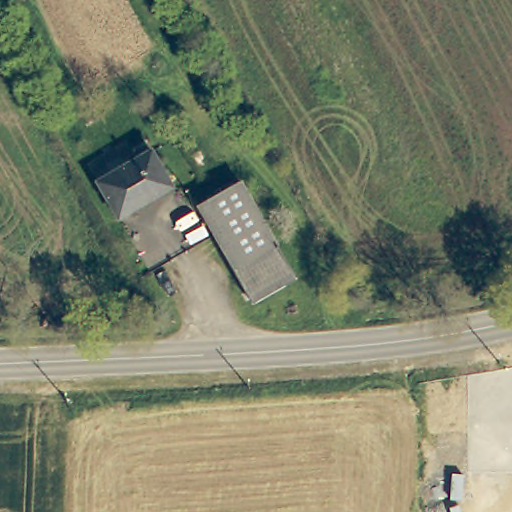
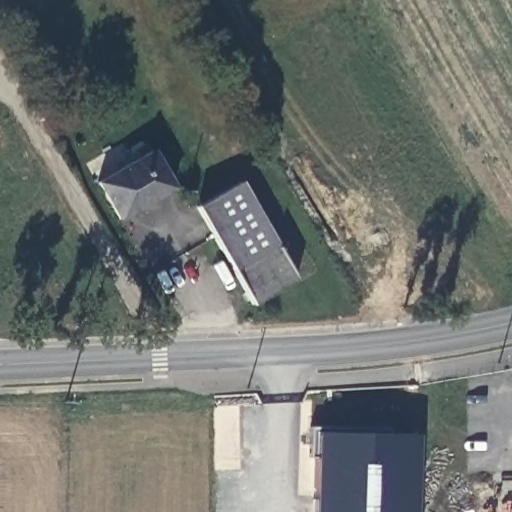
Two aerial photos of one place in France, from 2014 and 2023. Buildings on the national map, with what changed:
unchanged [(149,139),(175,187),(121,219),(100,182),(139,160),(132,147),(149,139)]
unchanged [(295,278),(252,302),(197,205),(240,180),(295,278)]
new [(313,512),(315,432),(413,432),(413,512),(313,512)]

